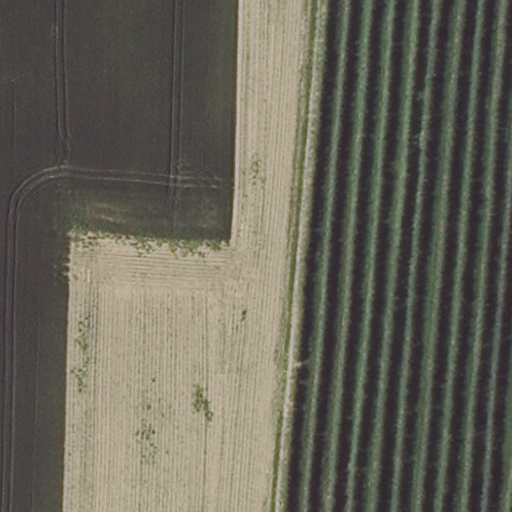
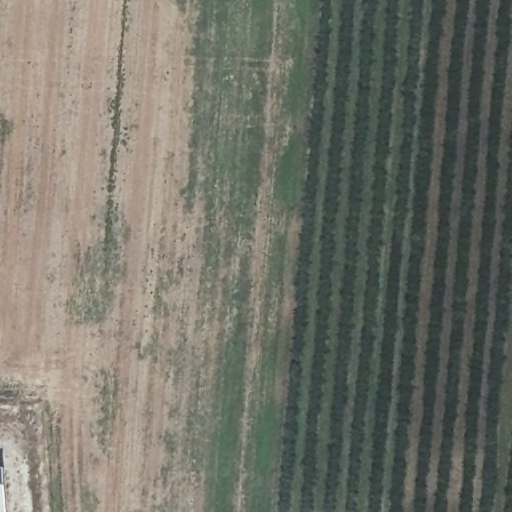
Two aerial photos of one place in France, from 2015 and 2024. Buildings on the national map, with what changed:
new [(3,470),(6,512),(0,512),(0,470),(3,470)]

